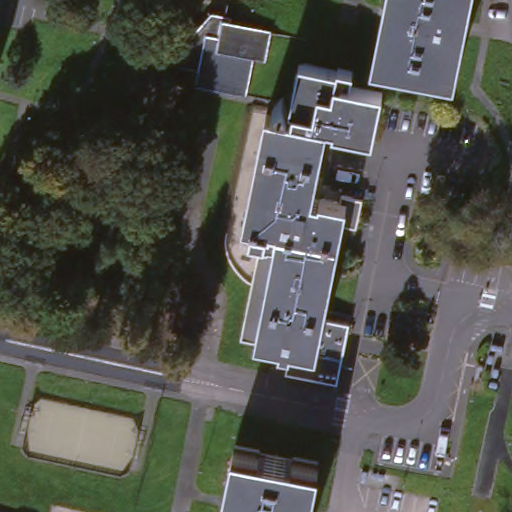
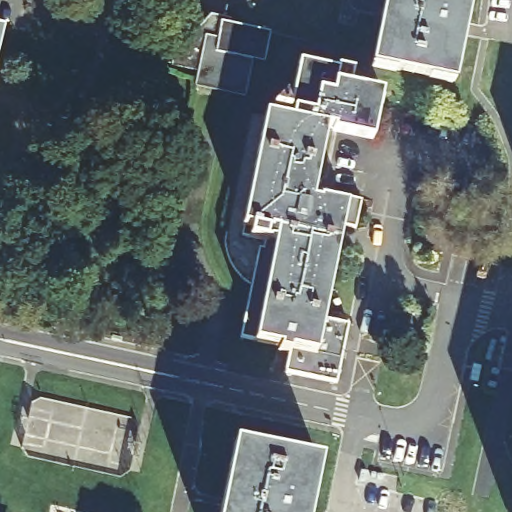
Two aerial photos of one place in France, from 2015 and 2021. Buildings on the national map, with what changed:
unchanged [(454,86),(372,69),(387,0),(473,0),(454,86)]
unchanged [(264,60),(253,57),(244,95),(199,85),(202,70),(174,64),(179,46),(188,48),(212,21),(271,33),(264,60)]
unchanged [(0,47),(0,39),(2,39),(0,47)]
unchanged [(321,126),(296,121),(302,90),(297,88),(302,66),(336,72),(337,70),(337,69),(354,73),(351,86),(384,93),(375,136),(328,128),(324,127),(321,126)]
unchanged [(284,348),(255,343),(278,235),(249,229),(244,228),(261,147),(268,115),(296,121),(321,126),(324,127),(328,128),(314,199),(319,201),(324,202),(341,206),(342,200),(343,196),(365,202),(359,230),(356,229),(352,228),(351,228),(342,226),(337,225),(318,320),(311,353),(288,349),(284,348)]
unchanged [(311,353),(318,320),(345,325),(333,382),(283,372),(288,349),(311,353)]
unchanged [(226,512),(239,444),(321,462),(311,512),(226,512)]

